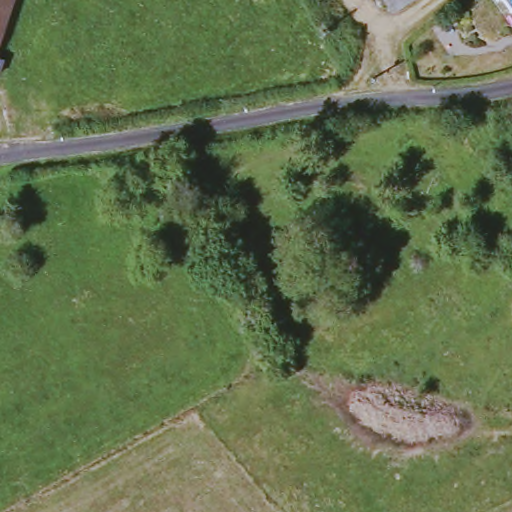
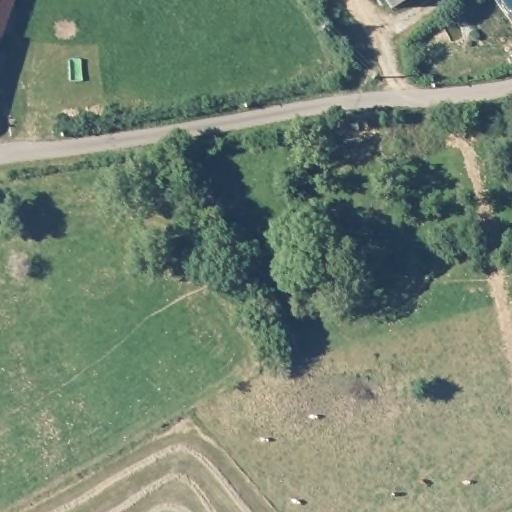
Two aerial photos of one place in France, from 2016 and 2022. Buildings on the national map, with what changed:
unchanged [(0,0),(16,0),(2,38),(0,37),(0,0)]
unchanged [(395,9),(390,0),(408,0),(395,9)]
unchanged [(0,37),(2,38),(0,42),(0,37)]

